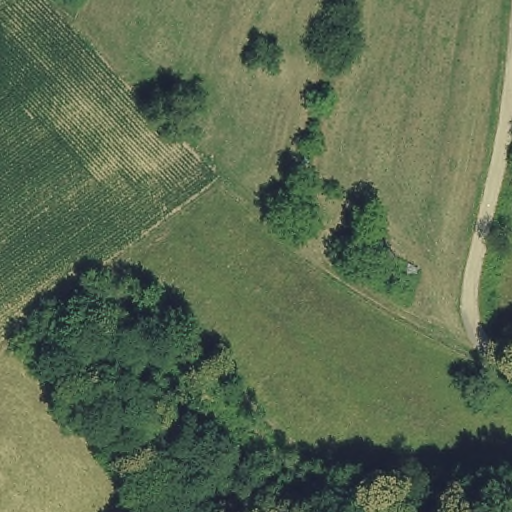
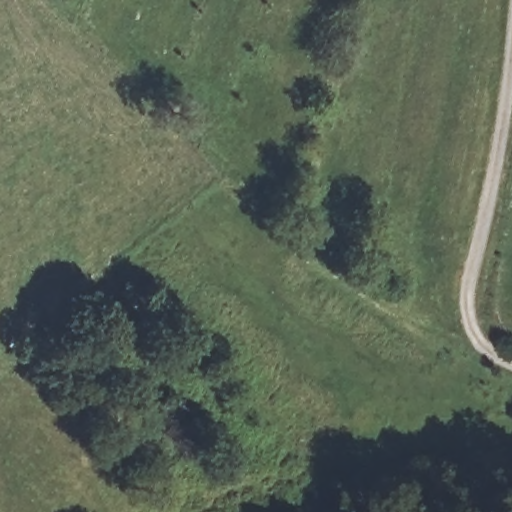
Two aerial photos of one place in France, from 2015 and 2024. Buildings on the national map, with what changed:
unchanged [(373,255),(413,272),(402,300),(362,277),(373,255)]

